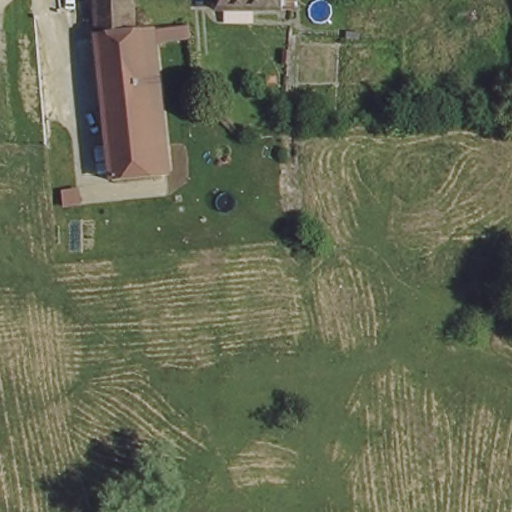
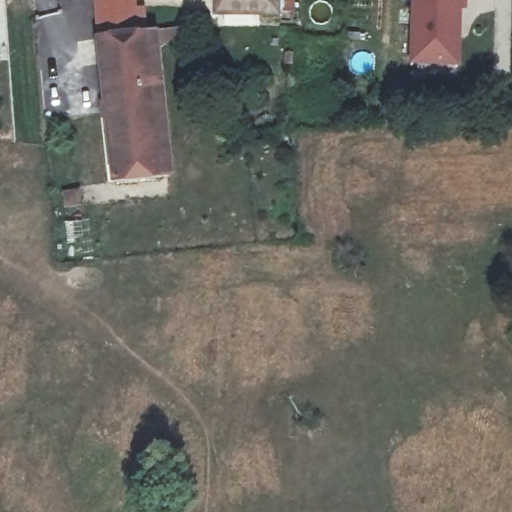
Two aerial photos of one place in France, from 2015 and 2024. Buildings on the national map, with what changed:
unchanged [(132,36),(97,34),(94,0),(129,0),(132,36)]
unchanged [(282,14),(217,12),(217,0),(283,0),(282,14)]
new [(408,61),(410,0),(467,0),(467,10),(460,9),(459,65),(408,61)]
unchanged [(132,36),(144,37),(160,178),(107,185),(97,34),(132,36)]
unchanged [(191,168),(192,185),(164,185),(166,167),(191,168)]

